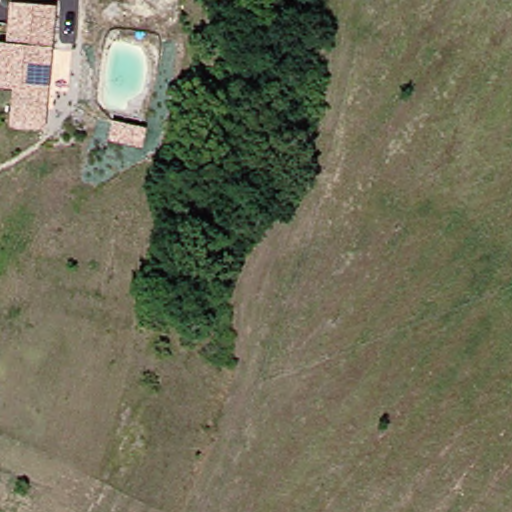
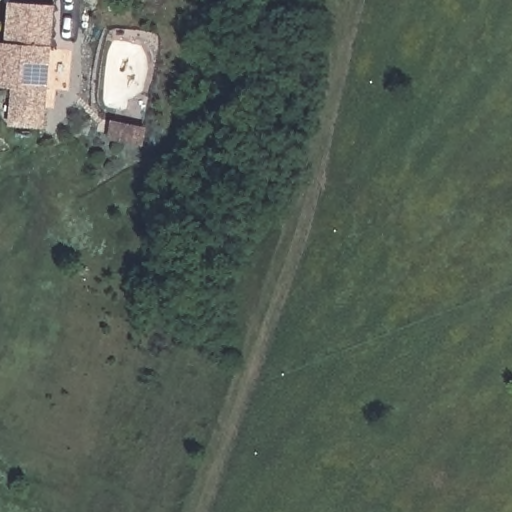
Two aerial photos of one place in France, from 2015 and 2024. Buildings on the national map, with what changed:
unchanged [(62,2),(54,125),(20,124),(22,84),(17,84),(2,83),(5,41),(16,41),(19,0),(62,2)]
unchanged [(148,135),(116,132),(117,115),(150,119),(148,135)]

